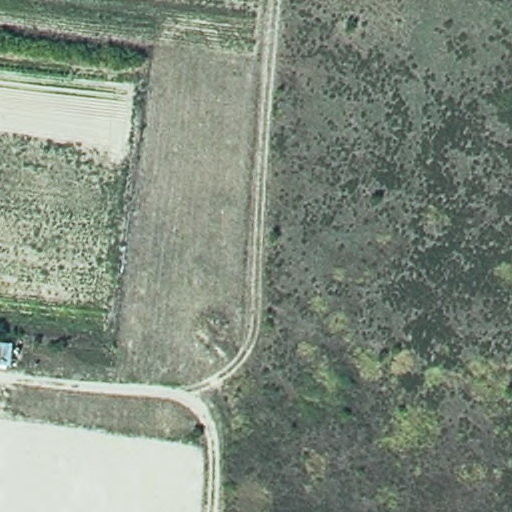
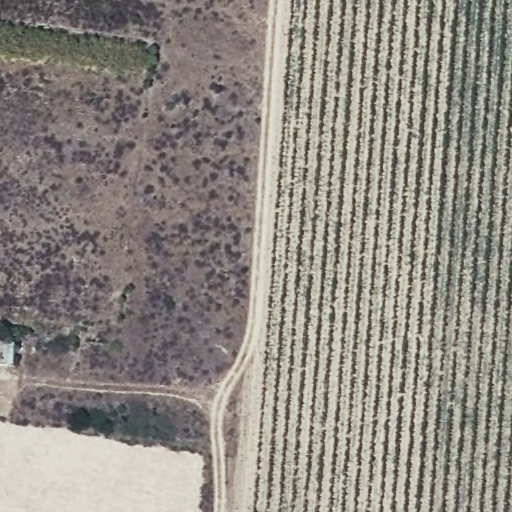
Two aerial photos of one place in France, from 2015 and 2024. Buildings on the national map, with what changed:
unchanged [(0,360),(0,337),(15,339),(10,361),(0,360)]

